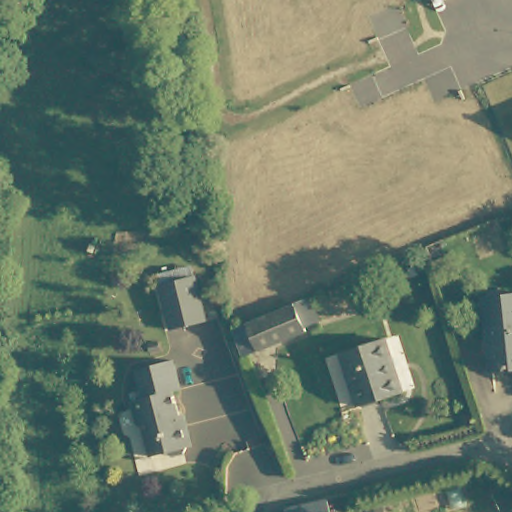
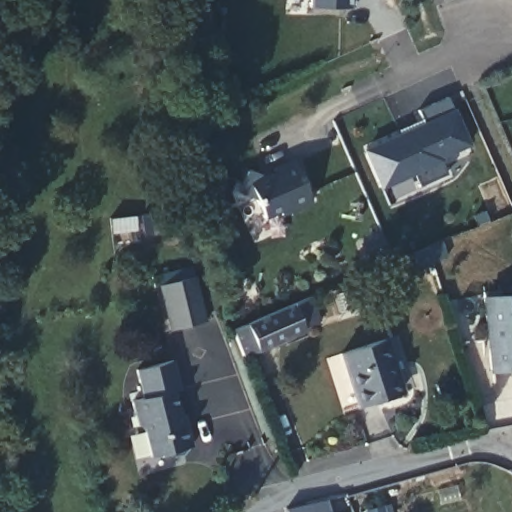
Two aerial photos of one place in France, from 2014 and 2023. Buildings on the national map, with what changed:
new [(353,7),(348,7),(307,5),(308,0),(354,0),(353,7)]
new [(425,123),(417,110),(448,97),(455,111),(470,147),(441,160),(448,174),(419,187),(414,175),(380,190),(363,150),(425,123)]
new [(247,169),(266,176),(275,172),(272,167),(293,159),(310,205),(279,218),(277,211),(263,217),(256,199),(237,194),(247,169)]
unchanged [(205,323),(171,332),(159,288),(192,278),(205,323)]
unchanged [(486,368),(483,298),(512,296),(512,367),(486,368)]
unchanged [(262,345),(250,319),(297,300),(308,328),(282,337),(262,345)]
unchanged [(391,358),(401,392),(360,404),(343,352),(388,337),(394,357),(391,358)]
unchanged [(130,401),(141,397),(134,368),(171,357),(180,387),(171,390),(181,424),(187,422),(192,442),(186,443),(188,448),(172,452),(170,450),(154,453),(145,426),(138,425),(132,408),(130,401)]
unchanged [(342,494),(345,510),(334,512),(284,512),(283,510),(325,497),(342,494)]

